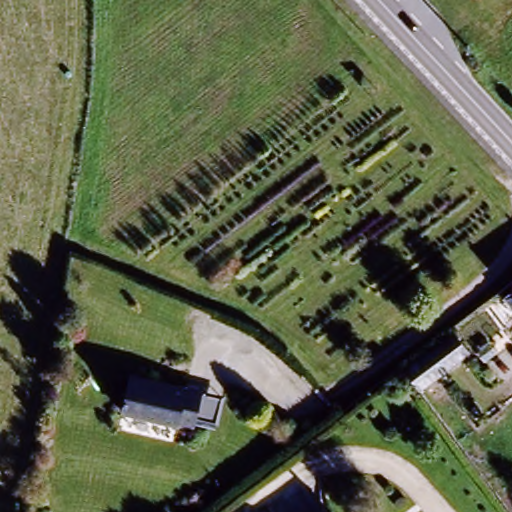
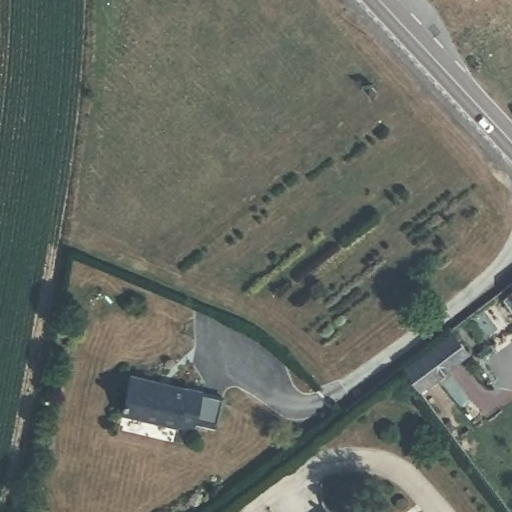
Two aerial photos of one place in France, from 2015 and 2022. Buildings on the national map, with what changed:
unchanged [(512,291),(509,287),(512,286),(512,291)]
unchanged [(448,330),(465,351),(431,376),(417,386),(401,366),(448,330)]
unchanged [(206,387),(195,428),(123,411),(134,370),(206,387)]

